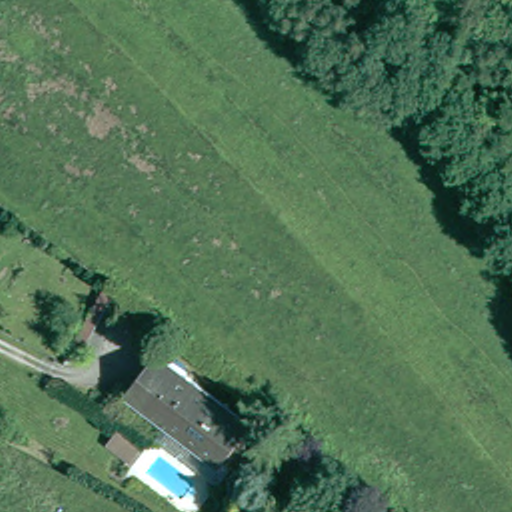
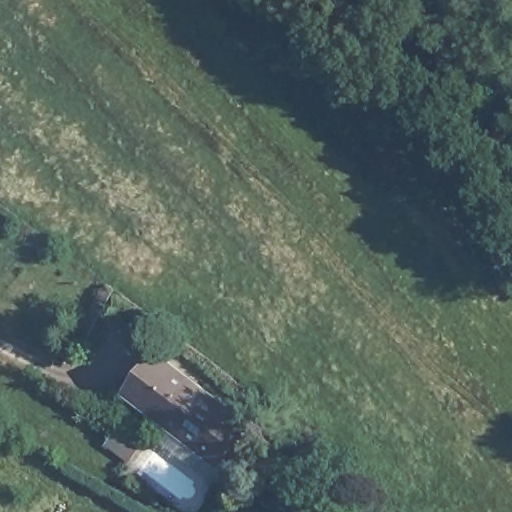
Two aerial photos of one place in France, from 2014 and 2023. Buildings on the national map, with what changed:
unchanged [(219,464),(130,404),(156,363),(208,399),(211,396),(249,421),(219,464)]

